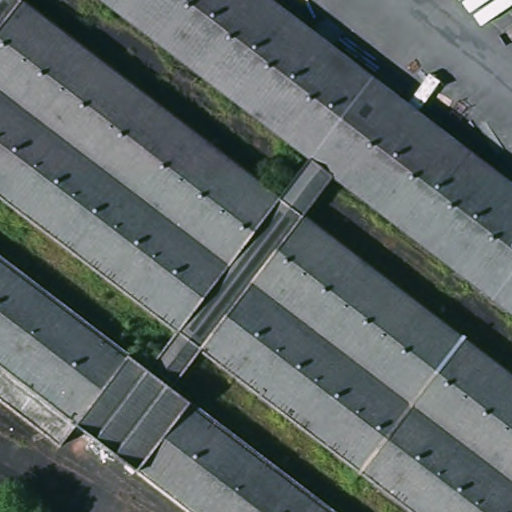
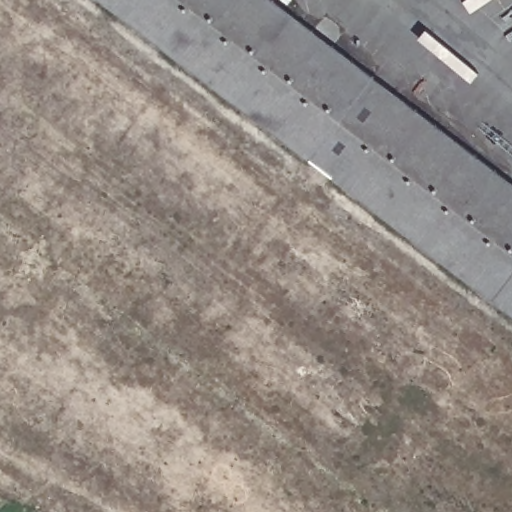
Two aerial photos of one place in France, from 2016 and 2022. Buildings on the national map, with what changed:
demolished [(512,377),(512,512),(412,512),(384,490),(199,347),(170,385),(202,410),(332,512),(188,512),(143,477),(73,422),(56,444),(0,401),(0,254),(126,352),(155,315),(0,195),(0,0),(44,0),(36,10),(139,89),(258,181),(289,143),(331,175),(301,214),(512,377)]
unchanged [(275,0),(412,106),(512,183),(512,314),(343,185),(331,175),(289,143),(185,63),(103,0),(275,0)]

